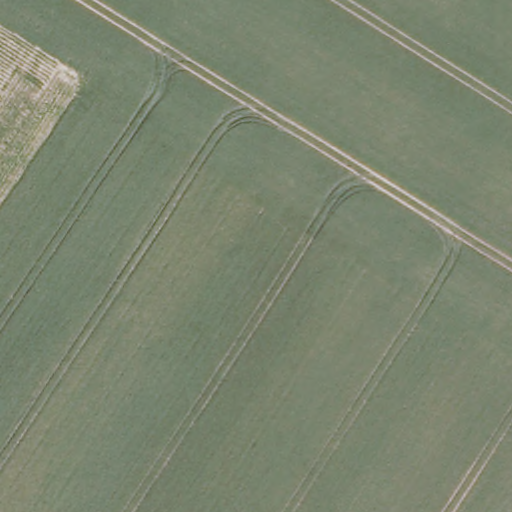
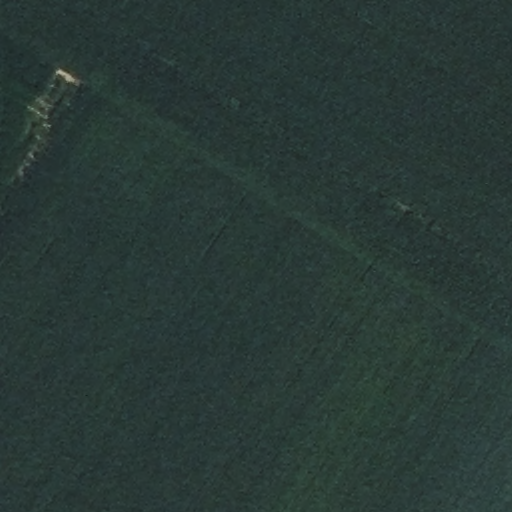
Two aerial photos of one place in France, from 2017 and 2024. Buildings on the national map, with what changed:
[]

